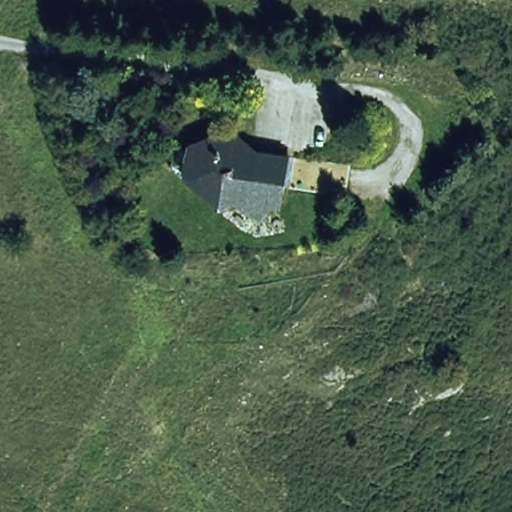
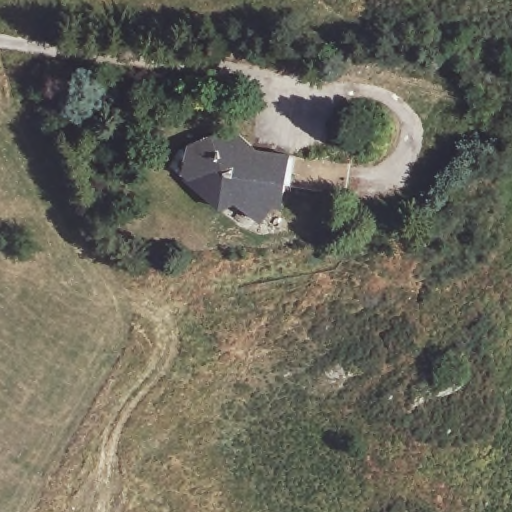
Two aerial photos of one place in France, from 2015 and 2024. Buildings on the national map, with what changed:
unchanged [(271,215),(260,230),(242,219),(248,211),(236,203),(220,212),(190,187),(195,180),(182,174),(188,145),(220,131),(247,136),(258,153),(291,158),(285,216),(271,215)]

